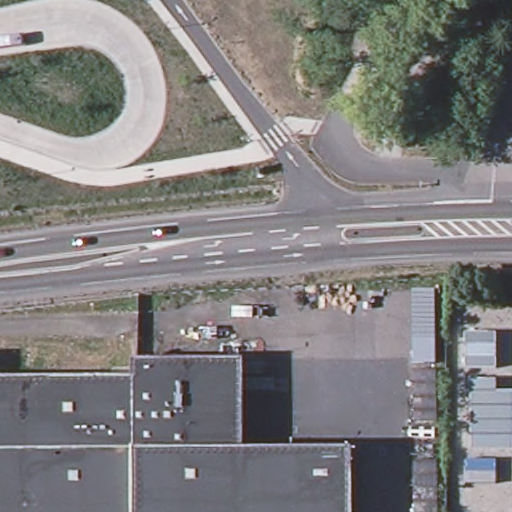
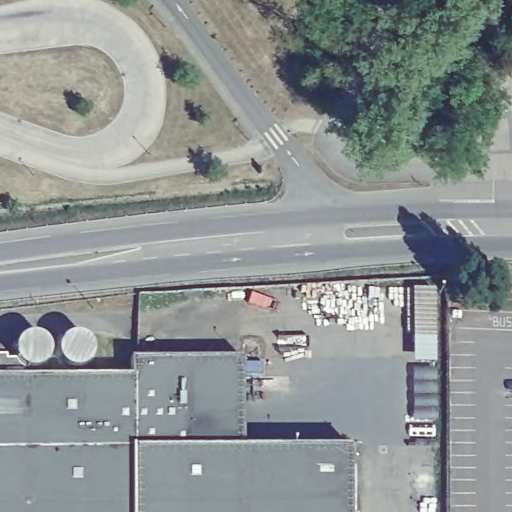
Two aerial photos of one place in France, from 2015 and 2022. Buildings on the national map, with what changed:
unchanged [(377,292),(435,290),(433,366),(377,364),(377,292)]
unchanged [(125,378),(126,356),(238,357),(238,446),(342,447),(344,512),(0,512),(0,377),(125,378)]

